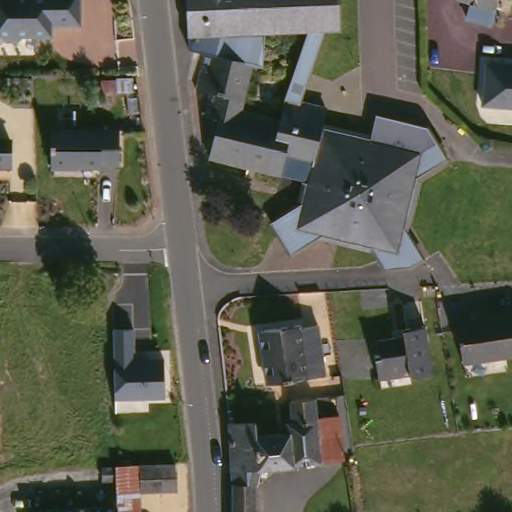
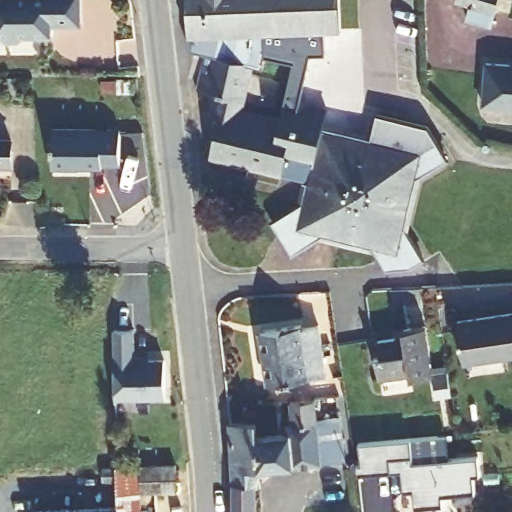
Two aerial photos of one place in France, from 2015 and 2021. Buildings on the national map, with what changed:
unchanged [(77,26),(56,26),(56,22),(48,22),(48,37),(20,37),(15,42),(1,42),(0,41),(0,0),(77,0),(77,26)]
unchanged [(301,110),(326,116),(322,135),(369,147),(376,121),(427,134),(446,163),(415,184),(406,233),(424,260),(395,279),(376,251),(325,239),(293,256),(274,223),(303,207),(315,163),(288,156),(282,177),(213,160),(222,122),(210,118),(215,96),(200,91),(207,69),(211,56),(218,57),(225,37),(195,38),(194,0),(345,0),(347,32),(332,33),(320,60),(301,110)]
unchanged [(479,20),(483,2),(474,0),(503,0),(501,7),(497,24),(479,20)]
unchanged [(512,65),(512,105),(483,101),(487,61),(512,65)]
unchanged [(121,128),(122,163),(104,164),(104,166),(54,168),(52,130),(121,128)]
unchanged [(17,174),(1,174),(1,169),(0,169),(0,147),(17,147),(17,174)]
unchanged [(463,367),(455,323),(512,314),(512,360),(463,367)]
unchanged [(303,325),(304,328),(322,327),(327,377),(268,385),(262,330),(303,325)]
unchanged [(428,327),(433,375),(413,378),(412,375),(379,378),(377,353),(384,352),(383,339),(407,336),(407,330),(428,327)]
unchanged [(115,328),(136,330),(137,352),(168,354),(170,392),(117,395),(115,328)]
unchanged [(240,421),(255,418),(257,433),(285,431),(285,420),(296,418),(296,412),(296,410),(295,405),(295,397),(318,397),(320,416),(342,415),(346,459),(259,465),(259,512),(233,512),(231,422),(240,421)]
new [(411,440),(413,462),(479,457),(481,475),(473,476),(475,492),(449,495),(450,506),(437,507),(437,505),(416,506),(415,490),(405,491),(403,470),(357,475),(357,464),(363,463),(360,443),(411,440)]
unchanged [(136,496),(137,512),(116,512),(116,510),(111,469),(185,466),(186,493),(161,495),(136,496)]
unchanged [(116,512),(81,512),(116,510),(116,512)]

